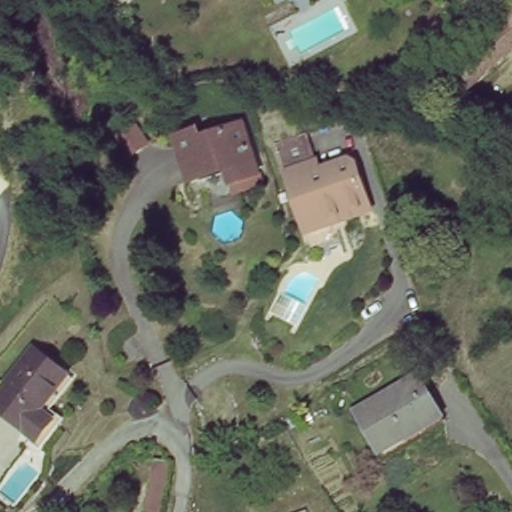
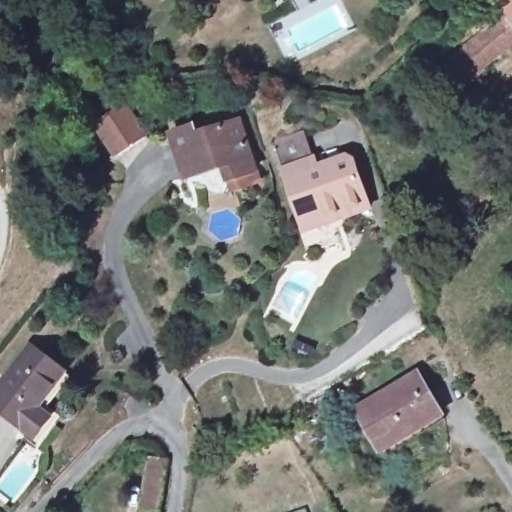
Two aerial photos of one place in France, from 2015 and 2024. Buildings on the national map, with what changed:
new [(113,158),(93,124),(126,104),(148,137),(113,158)]
unchanged [(174,140),(193,134),(196,143),(241,126),(260,178),(233,188),(226,172),(193,185),(191,184),(174,140)]
unchanged [(306,222),(278,139),(307,129),(320,165),(346,156),(359,163),(376,209),(351,217),(309,232),(306,222)]
unchanged [(0,378),(29,344),(61,371),(31,406),(43,418),(30,434),(0,408),(0,378)]
unchanged [(353,401),(414,364),(439,412),(378,448),(353,401)]
unchanged [(159,512),(139,512),(148,461),(168,462),(159,512)]

